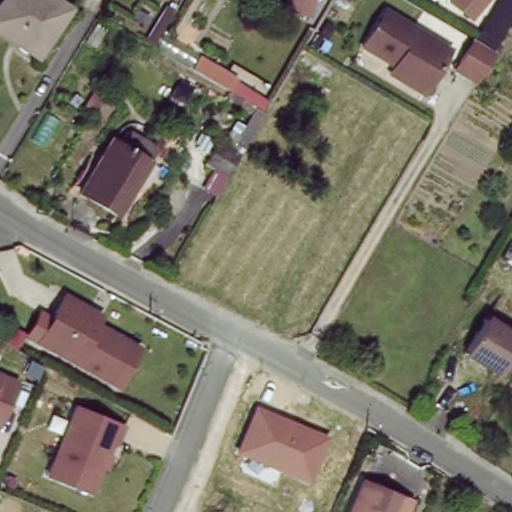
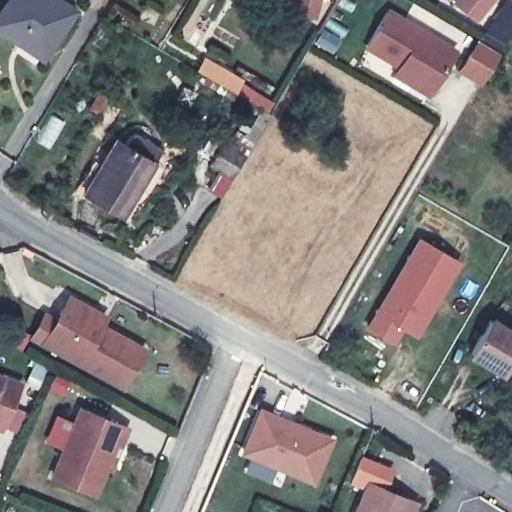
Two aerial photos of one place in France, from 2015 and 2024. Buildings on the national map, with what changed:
unchanged [(0,26),(0,14),(9,0),(65,0),(76,7),(48,50),(44,55),(18,38),(0,26)]
unchanged [(315,15),(292,8),(295,0),(319,0),(315,15)]
unchanged [(477,24),(452,3),(454,0),(496,0),(477,24)]
unchanged [(400,60),(368,41),(390,4),(452,40),(456,42),(443,65),(430,87),(412,76),(396,67),(400,60)]
unchanged [(456,42),(472,50),(483,39),(505,50),(485,90),(443,65),(456,42)]
unchanged [(87,194),(120,140),(127,144),(135,130),(164,147),(156,161),(123,216),(87,194)]
unchanged [(214,159),(224,142),(247,155),(237,172),(214,159)]
new [(367,328),(419,237),(462,262),(417,338),(403,330),(395,345),(367,328)]
unchanged [(122,385),(42,345),(65,295),(113,317),(109,328),(147,346),(122,385)]
unchanged [(512,326),(512,362),(507,371),(473,350),(493,315),(512,326)]
unchanged [(0,427),(0,371),(26,378),(4,428),(0,427)]
unchanged [(314,483),(240,453),(258,407),(333,437),(314,483)]
unchanged [(99,497),(55,477),(84,410),(128,431),(99,497)]
new [(370,485),(367,490),(349,483),(361,455),(394,467),(384,491),(370,485)]
unchanged [(417,505),(414,512),(358,512),(370,485),(417,505)]

